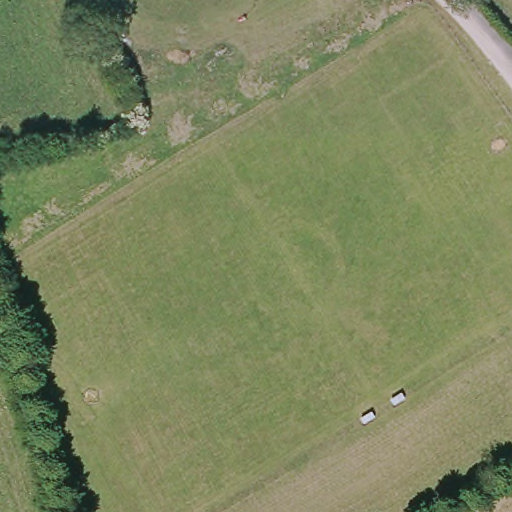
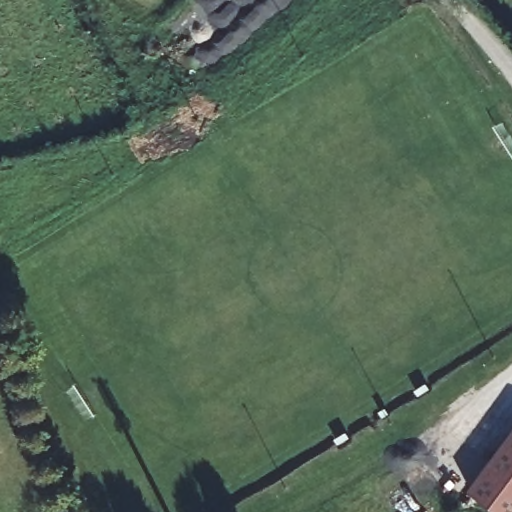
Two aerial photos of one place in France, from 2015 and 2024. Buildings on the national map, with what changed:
new [(512,434),(512,512),(500,512),(470,490),(512,434)]

